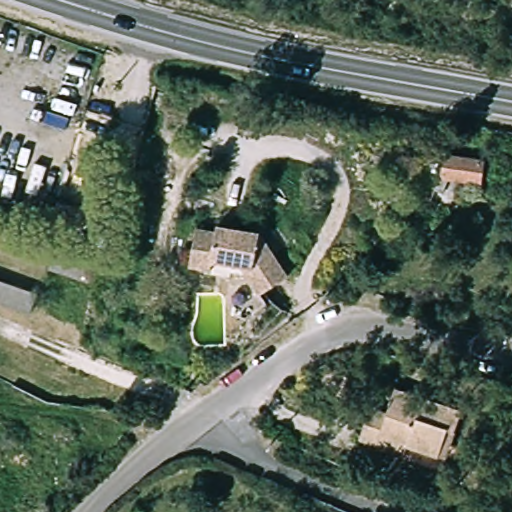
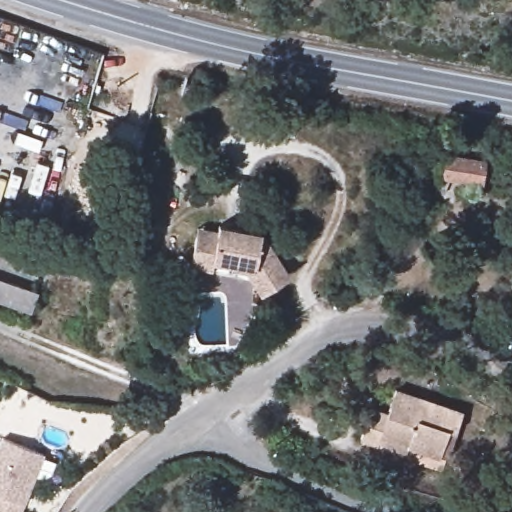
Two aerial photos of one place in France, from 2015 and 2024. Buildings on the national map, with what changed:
unchanged [(450,172),(455,151),(491,158),(488,177),(460,174),(440,196),(433,189),(450,172)]
unchanged [(259,294),(243,271),(190,260),(196,228),(216,231),(220,224),(261,231),(289,275),(259,294)]
unchanged [(55,274),(61,254),(100,265),(94,286),(55,274)]
unchanged [(0,300),(0,275),(36,288),(27,310),(0,300)]
unchanged [(411,449),(407,458),(362,441),(371,414),(389,420),(397,396),(463,417),(458,436),(449,434),(440,458),(411,449)]
new [(43,455),(23,504),(21,512),(0,512),(0,440),(1,437),(43,455)]

